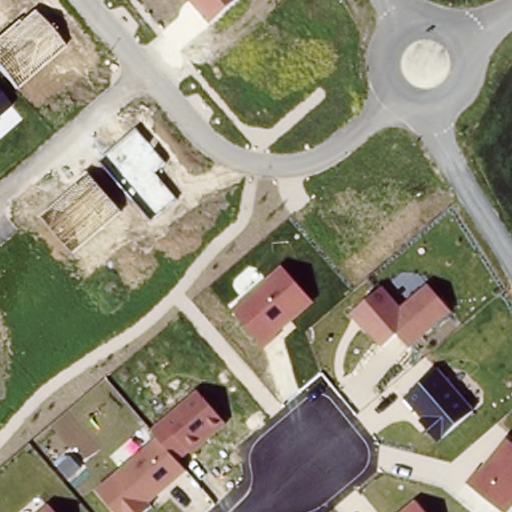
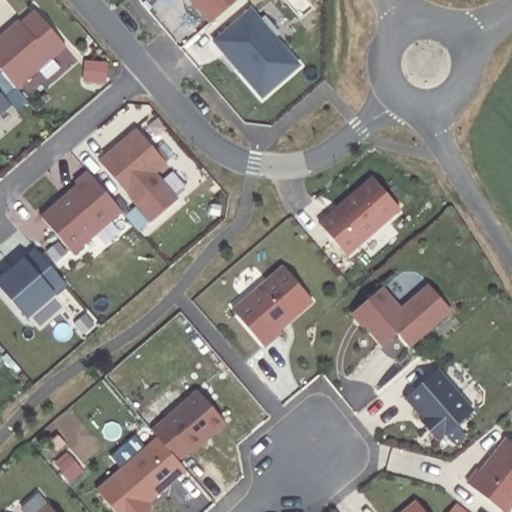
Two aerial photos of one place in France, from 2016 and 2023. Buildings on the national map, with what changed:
unchanged [(210,24),(190,0),(237,0),(210,24)]
new [(252,9),(300,68),(262,99),(212,42),(252,9)]
unchanged [(0,68),(0,37),(18,22),(21,24),(33,12),(65,48),(18,89),(0,68)]
unchanged [(17,87),(4,98),(0,93),(0,68),(17,87)]
unchanged [(0,116),(0,93),(11,106),(0,116)]
unchanged [(152,223),(100,162),(136,129),(165,164),(155,175),(177,200),(152,223)]
unchanged [(73,253),(41,217),(77,186),(75,183),(86,173),(120,212),(73,253)]
new [(372,177),(400,211),(348,256),(319,223),(372,177)]
new [(24,258),(35,249),(65,285),(55,296),(27,319),(0,287),(0,280),(24,258)]
unchanged [(312,298),(264,343),(230,309),(280,264),(312,298)]
unchanged [(450,309),(409,347),(391,332),(377,344),(350,314),(383,284),(401,306),(427,285),(450,309)]
unchanged [(475,411),(439,442),(420,421),(423,418),(405,398),(438,369),(475,411)]
unchanged [(227,422),(181,463),(187,469),(147,504),(150,507),(143,512),(117,512),(95,489),(155,439),(148,431),(197,389),(227,422)]
unchanged [(512,503),(507,511),(463,484),(502,435),(512,442),(512,503)]
unchanged [(396,512),(412,499),(424,512),(396,512)]
unchanged [(38,512),(48,504),(56,512),(38,512)]

